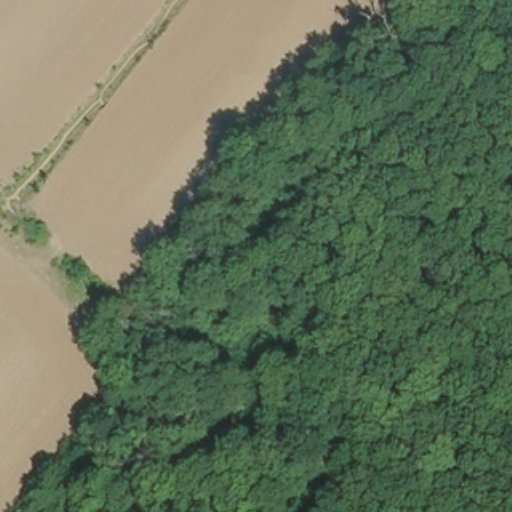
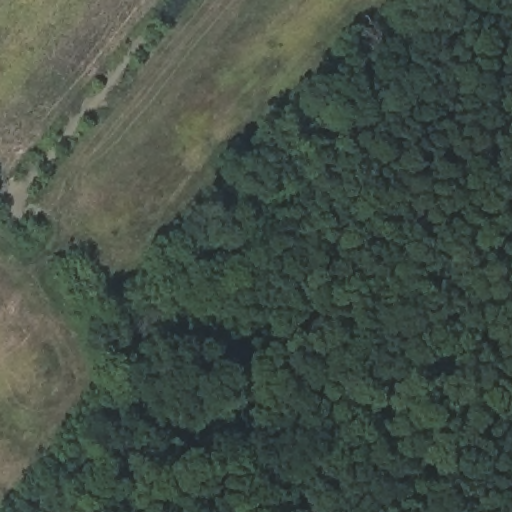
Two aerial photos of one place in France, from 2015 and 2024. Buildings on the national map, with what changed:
[]

